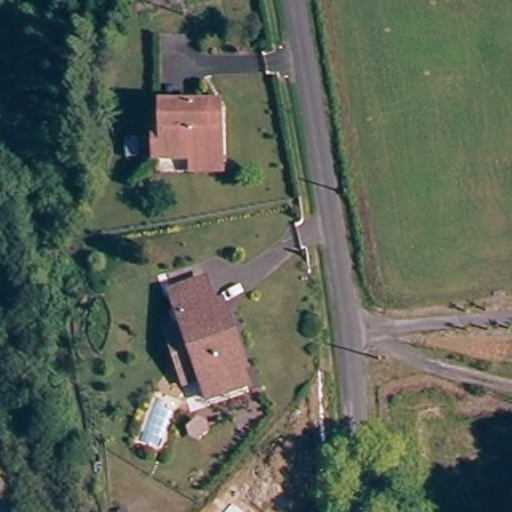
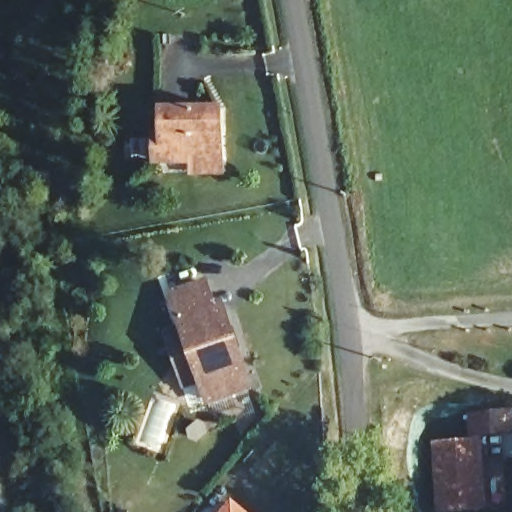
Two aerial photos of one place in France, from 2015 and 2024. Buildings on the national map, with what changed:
unchanged [(192,172),(192,160),(153,159),(154,134),(162,134),(163,110),(210,110),(220,111),(220,136),(219,160),(219,173),(192,172)]
unchanged [(181,311),(212,300),(222,328),(235,323),(258,385),(214,401),(208,385),(191,390),(174,343),(191,337),(181,311)]
new [(512,408),(512,432),(482,435),(468,436),(465,413),(512,408)]
new [(468,436),(482,435),(488,510),(461,512),(435,512),(430,440),(468,436)]
new [(233,500),(247,512),(223,512),(233,500)]

